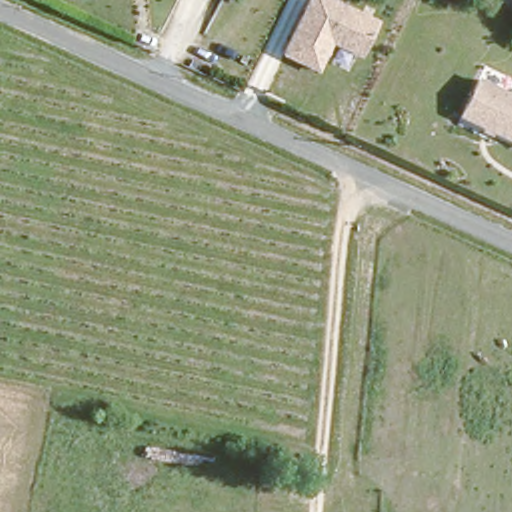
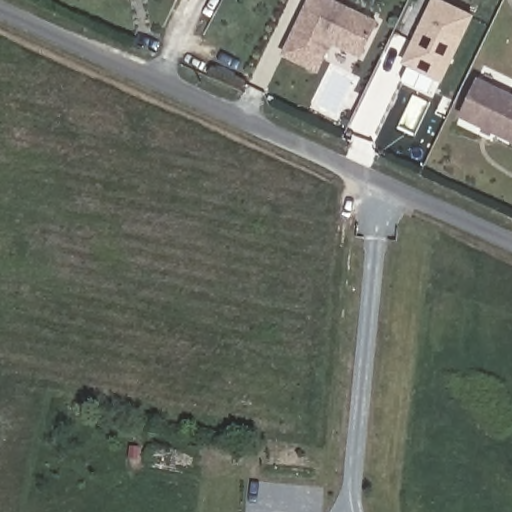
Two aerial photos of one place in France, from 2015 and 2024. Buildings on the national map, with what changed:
unchanged [(362,57),(333,46),(319,72),(282,53),(307,0),(335,0),(381,20),(362,57)]
new [(402,63),(433,0),(443,0),(475,15),(442,83),(402,63)]
unchanged [(476,76),(512,95),(512,142),(459,116),(476,76)]

